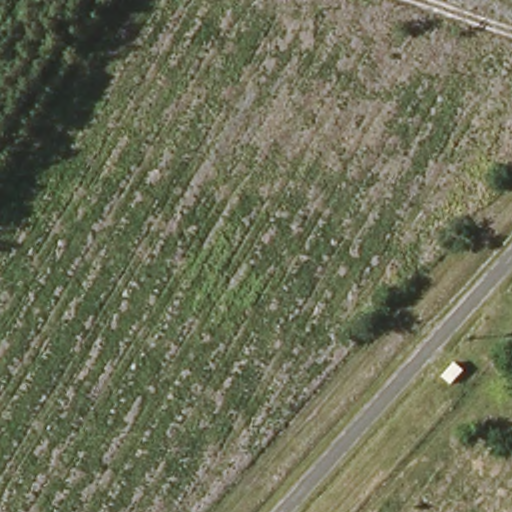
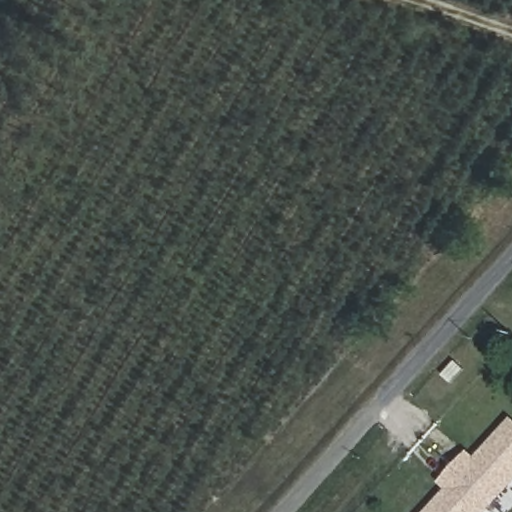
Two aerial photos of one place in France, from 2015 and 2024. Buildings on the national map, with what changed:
new [(472,462),(487,446),(492,440),(496,443),(512,426),(512,477),(489,502),(452,468),(465,455),(472,462)]
new [(427,510),(432,505),(436,508),(451,492),(439,482),(452,468),(489,502),(479,512),(429,512),(427,510)]

